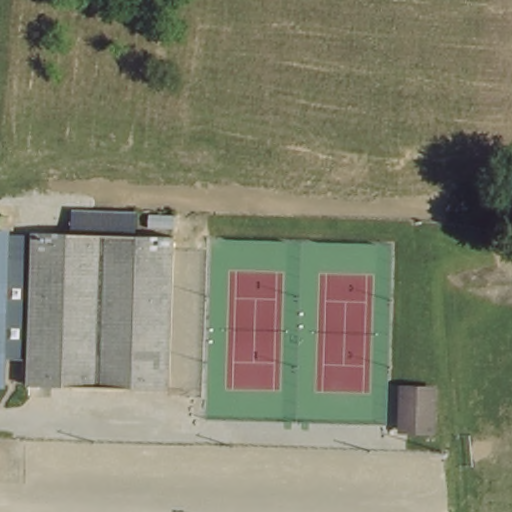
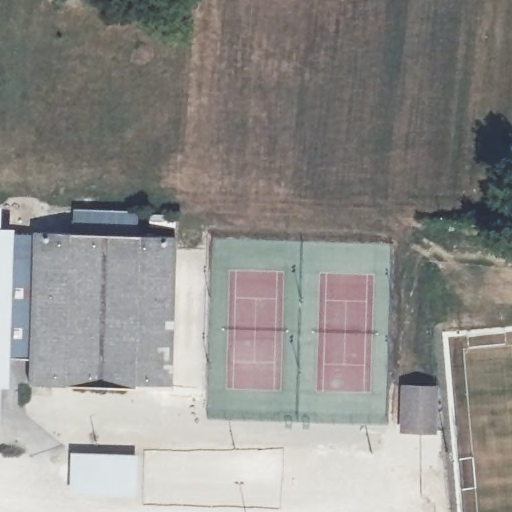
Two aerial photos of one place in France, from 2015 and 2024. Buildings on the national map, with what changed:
unchanged [(2,206),(0,226),(0,206),(2,206)]
unchanged [(9,233),(8,258),(31,259),(33,234),(72,235),(73,208),(100,209),(135,210),(134,237),(173,237),(168,387),(27,383),(28,358),(4,358),(4,382),(0,382),(0,233),(9,233)]
unchanged [(149,214),(174,214),(174,229),(149,229),(149,214)]
unchanged [(399,433),(400,390),(408,390),(431,391),(430,434),(407,433),(399,433)]
new [(70,456),(132,457),(132,495),(69,494),(70,456)]

